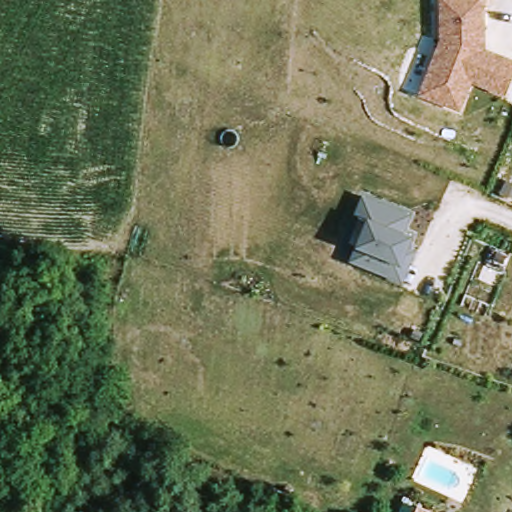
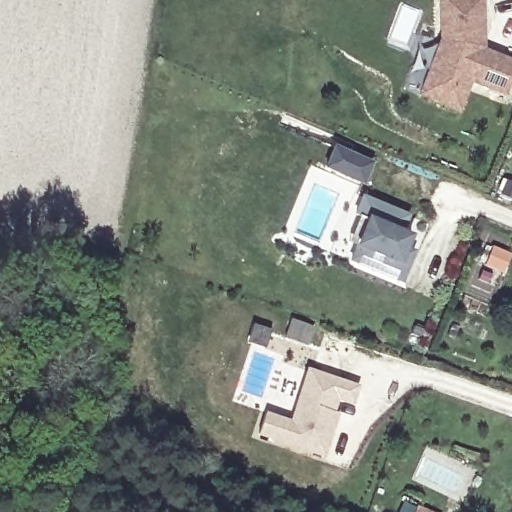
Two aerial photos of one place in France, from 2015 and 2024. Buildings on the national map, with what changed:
unchanged [(441,36),(441,0),(487,0),(486,46),(512,56),(512,78),(506,94),(473,83),(463,109),(419,93),(441,36)]
unchanged [(356,244),(350,241),(361,216),(354,214),(362,194),(412,213),(406,231),(413,234),(409,245),(417,248),(404,281),(349,262),(356,244)]
new [(289,420),(308,368),(360,386),(355,403),(339,400),(334,413),(338,414),(324,458),(258,436),(265,413),(289,420)]
unchanged [(433,512),(400,512),(406,500),(433,512)]

